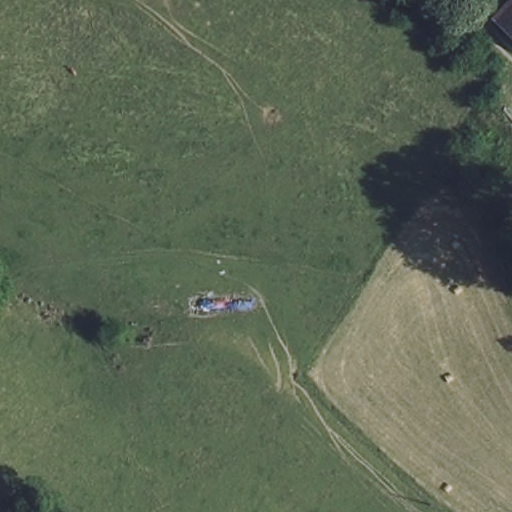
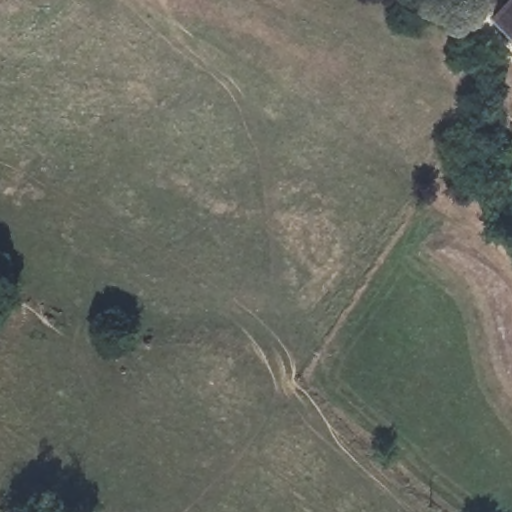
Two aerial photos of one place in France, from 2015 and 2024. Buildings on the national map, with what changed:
unchanged [(497,28),(512,10),(512,40),(497,28)]

